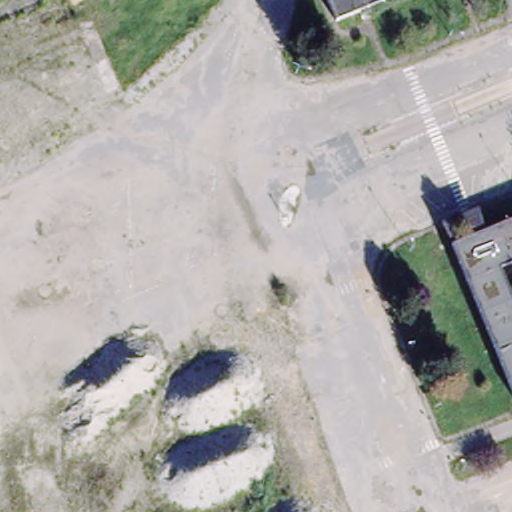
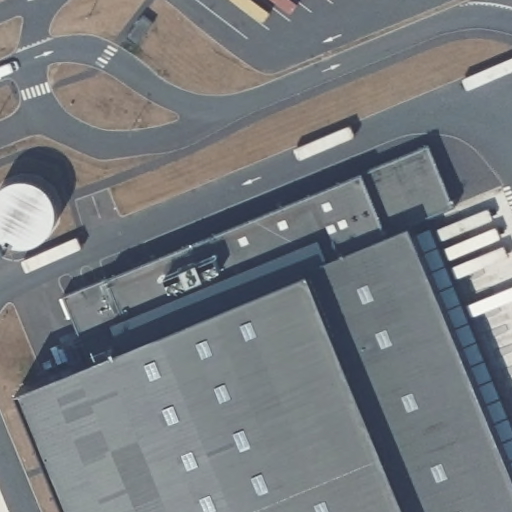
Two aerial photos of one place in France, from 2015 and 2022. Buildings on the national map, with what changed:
demolished [(368,7),(337,20),(329,0),(385,0),(368,7)]
new [(364,171),(428,144),(453,202),(411,220),(512,465),(512,512),(76,512),(24,386),(94,357),(66,294),(105,278),(364,171)]
demolished [(501,266),(512,292),(512,390),(453,243),(512,219),(512,261),(501,266)]

